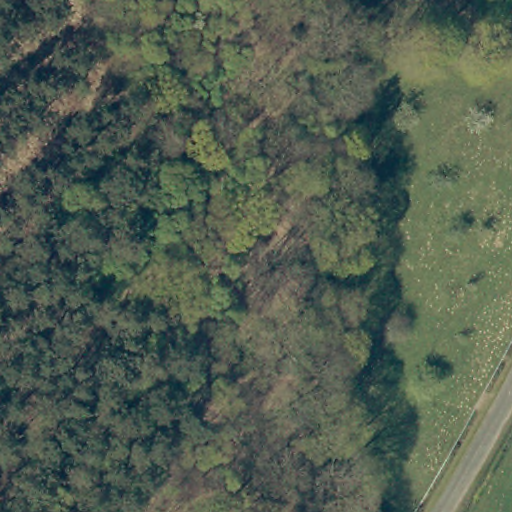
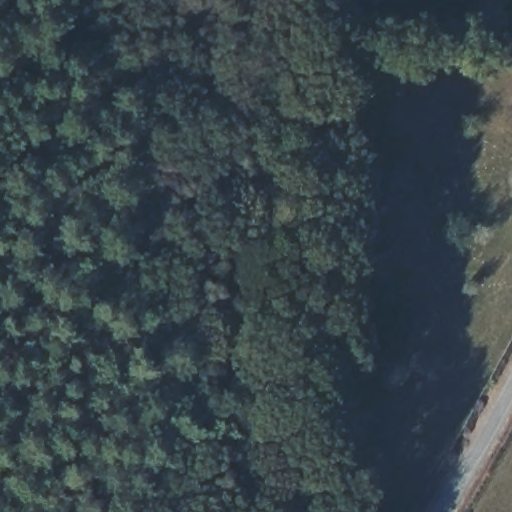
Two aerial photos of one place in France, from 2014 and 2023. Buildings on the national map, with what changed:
[]

